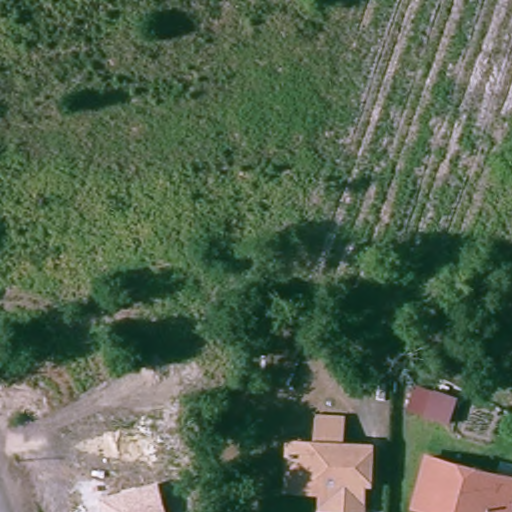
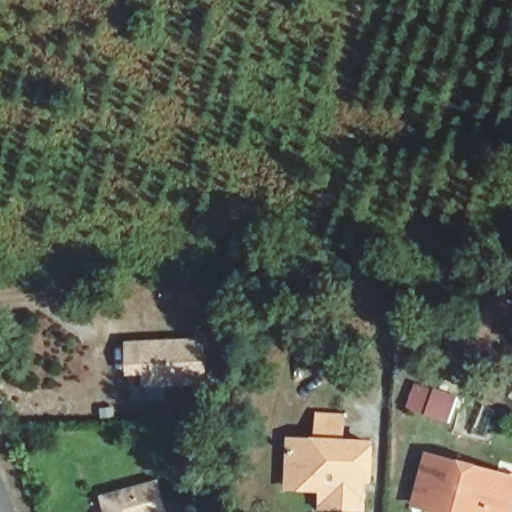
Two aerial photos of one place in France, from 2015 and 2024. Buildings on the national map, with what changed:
new [(143,387),(143,375),(125,375),(124,340),(205,337),(209,383),(143,387)]
new [(407,411),(415,383),(458,395),(450,423),(407,411)]
unchanged [(316,413),(346,414),(345,446),(314,445),(316,413)]
unchanged [(320,491),(287,489),(287,477),(288,443),(360,447),(368,447),(366,483),(358,483),(357,511),(333,510),(318,508),(319,504),(320,491)]
unchanged [(413,500),(427,451),(512,477),(512,486),(504,512),(452,512),(433,506),(413,500)]
unchanged [(99,498),(160,481),(168,512),(103,512),(99,498)]

